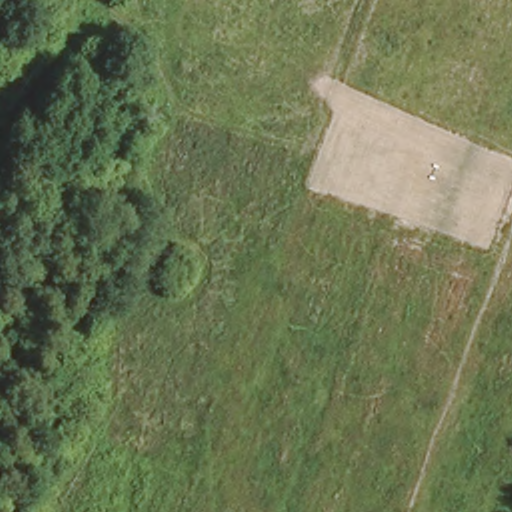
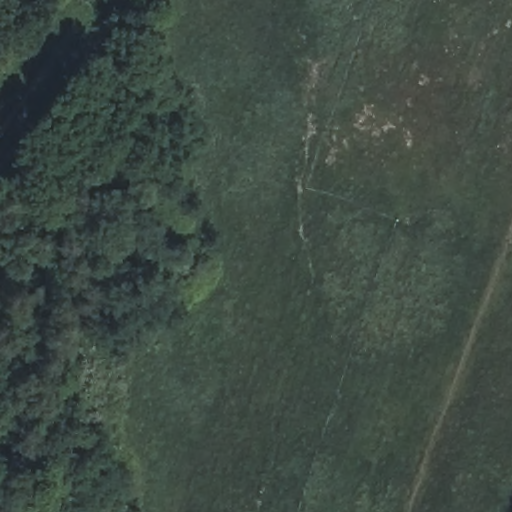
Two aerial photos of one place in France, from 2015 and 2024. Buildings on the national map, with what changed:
[]

